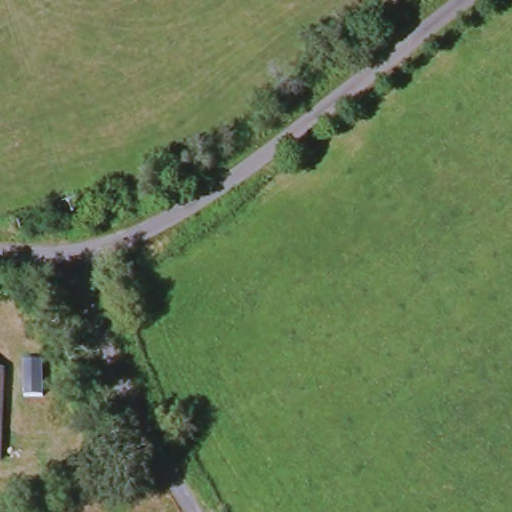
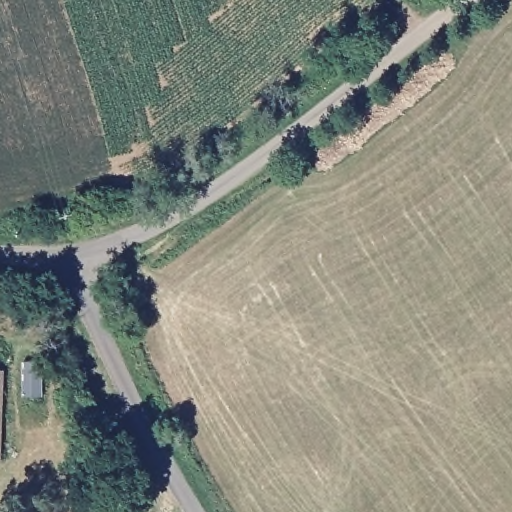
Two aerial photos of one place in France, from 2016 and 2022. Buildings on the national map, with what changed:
unchanged [(52,226),(69,225),(71,239),(53,240),(52,226)]
unchanged [(3,458),(0,458),(0,370),(5,370),(3,458)]

